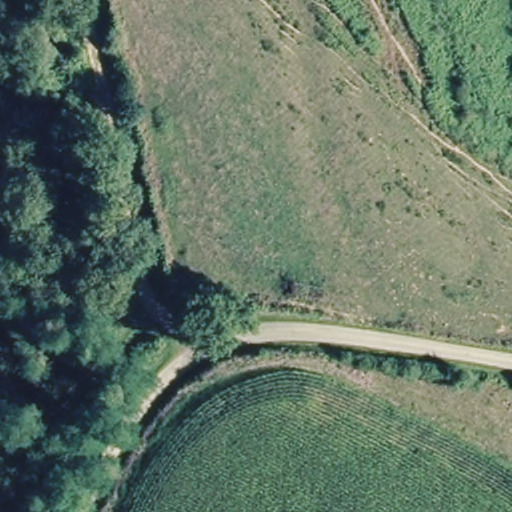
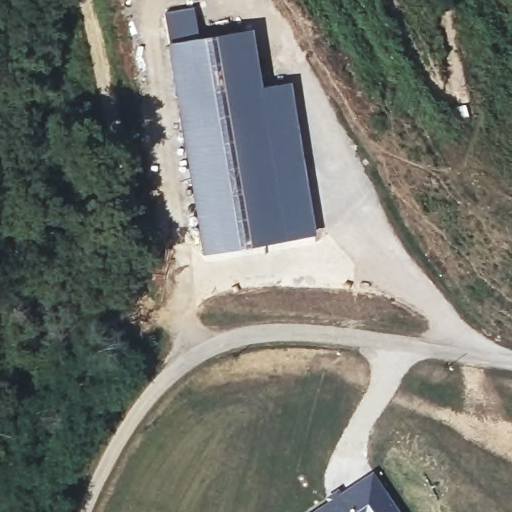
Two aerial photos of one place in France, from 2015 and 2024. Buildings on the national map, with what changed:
new [(194,6),(198,37),(253,28),(262,85),(291,80),(316,233),(201,252),(168,40),(164,10),(194,6)]
new [(401,512),(307,512),(372,468),(401,512)]

